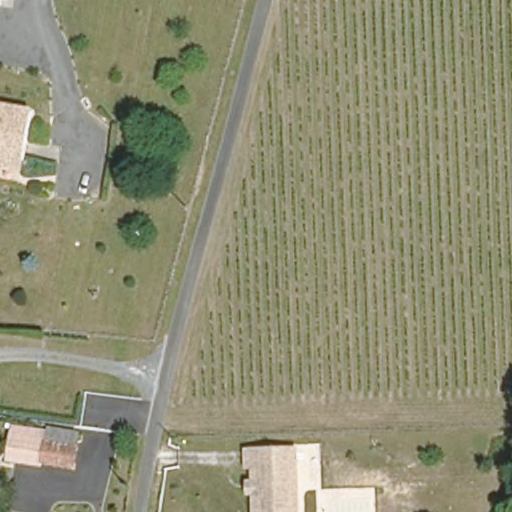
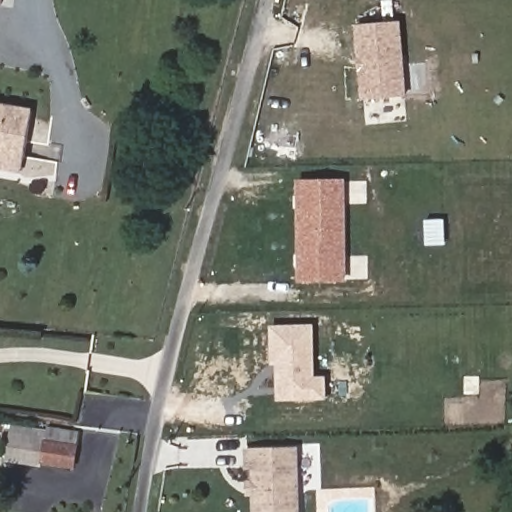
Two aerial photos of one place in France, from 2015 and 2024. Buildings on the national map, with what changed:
unchanged [(0,8),(0,0),(7,0),(5,9),(0,8)]
new [(355,26),(401,22),(407,97),(361,101),(355,26)]
unchanged [(0,166),(0,106),(33,112),(25,161),(22,170),(0,166)]
new [(341,198),(345,198),(347,272),(297,272),(295,181),(341,181),(341,198)]
new [(276,366),(270,366),(269,325),(313,325),(315,376),(315,377),(326,377),(327,400),(277,402),(276,366)]
new [(4,462),(11,425),(46,431),(43,467),(4,462)]
unchanged [(79,434),(75,470),(43,467),(46,431),(79,434)]
unchanged [(253,498),(247,497),(247,481),(252,481),(252,471),(246,471),(245,450),(298,447),(301,512),(254,512),(253,498)]

